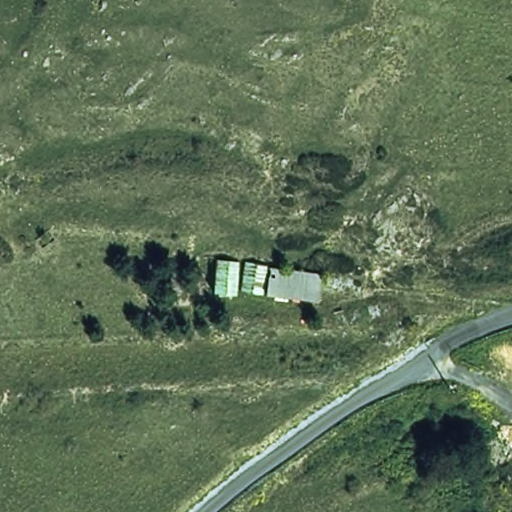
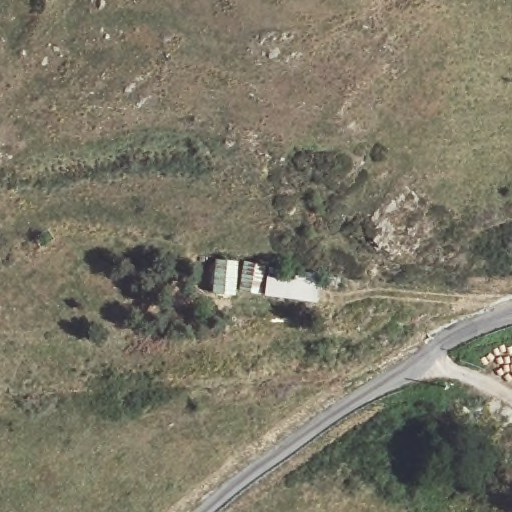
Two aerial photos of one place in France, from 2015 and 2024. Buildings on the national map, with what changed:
unchanged [(212,259),(239,261),(236,298),(210,296),(212,259)]
unchanged [(245,263),(263,267),(257,298),(239,295),(245,263)]
unchanged [(267,269),(320,275),(317,302),(265,297),(267,269)]

